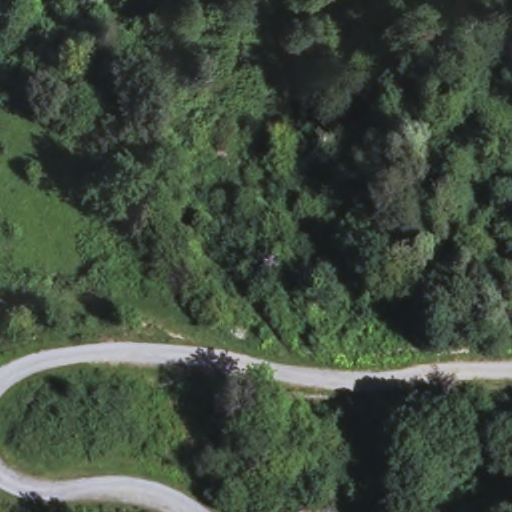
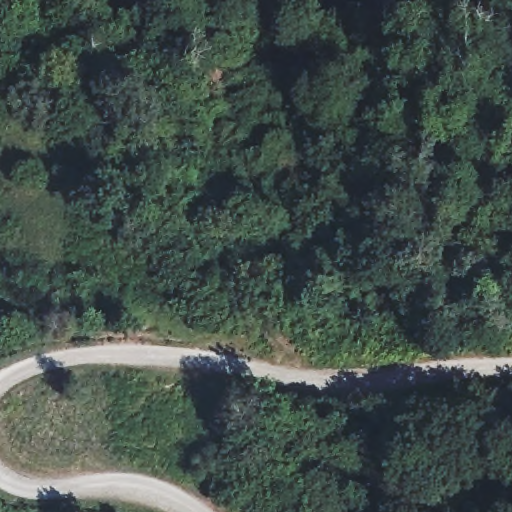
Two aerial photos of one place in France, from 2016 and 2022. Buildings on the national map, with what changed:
[]

